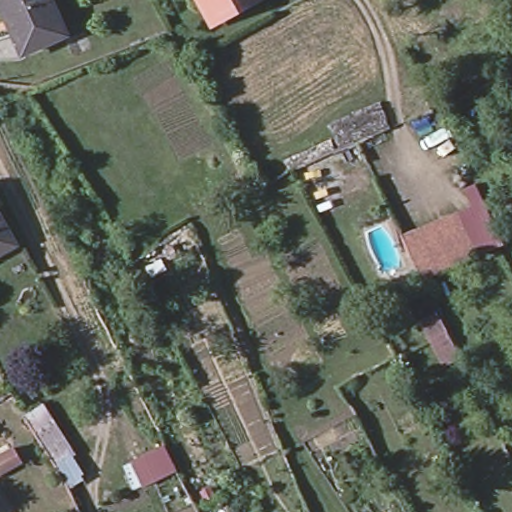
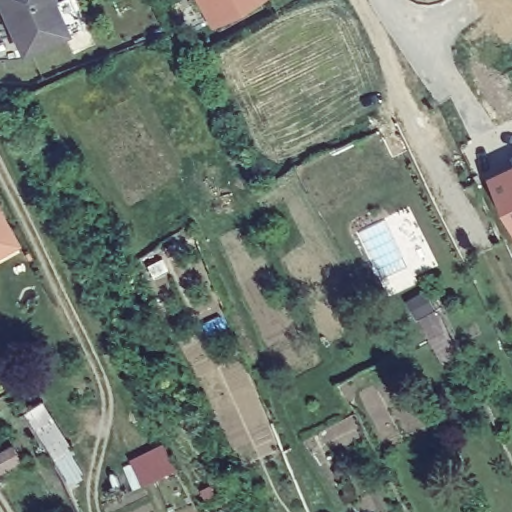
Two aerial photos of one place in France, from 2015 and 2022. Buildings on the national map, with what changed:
unchanged [(6,0),(56,0),(71,33),(28,52),(6,0)]
unchanged [(217,27),(202,0),(268,0),(217,27)]
new [(512,235),(485,180),(512,168),(512,235)]
unchanged [(10,233),(15,243),(0,252),(0,215),(10,233)]
unchanged [(465,215),(482,266),(430,287),(409,240),(465,215)]
unchanged [(25,414),(38,407),(82,480),(70,487),(65,481),(25,415),(25,414)]
unchanged [(12,445),(22,460),(0,473),(0,453),(12,445)]

